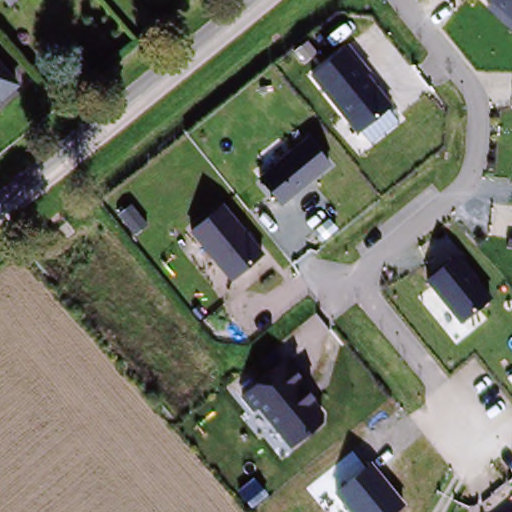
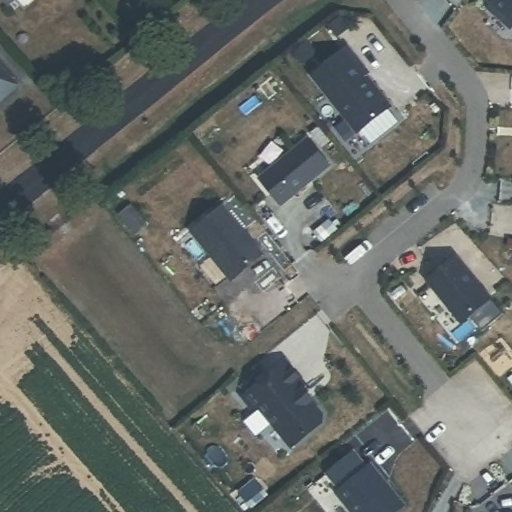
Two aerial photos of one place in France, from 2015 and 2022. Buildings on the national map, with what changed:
unchanged [(0,0),(18,0),(8,9),(0,0)]
unchanged [(511,34),(484,7),(487,1),(486,0),(512,0),(512,32),(511,34)]
unchanged [(370,76),(368,77),(393,110),(358,135),(310,77),(347,47),(370,76)]
unchanged [(0,107),(0,57),(23,88),(0,107)]
unchanged [(330,169),(282,207),(258,177),(307,138),(330,169)]
unchanged [(262,255),(231,279),(190,230),(220,205),(262,255)]
unchanged [(494,302),(461,328),(424,280),(455,255),(494,302)]
unchanged [(302,383),(317,401),(314,403),(324,417),(323,423),(290,450),(258,411),(253,415),(238,396),(284,360),(302,383)]
unchanged [(372,463),(406,505),(396,512),(351,512),(335,493),(372,463)]

